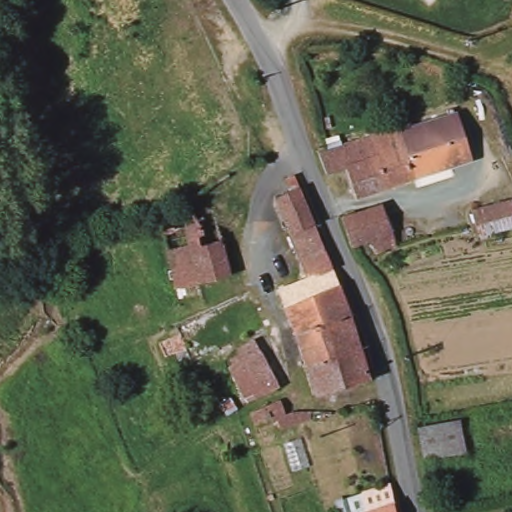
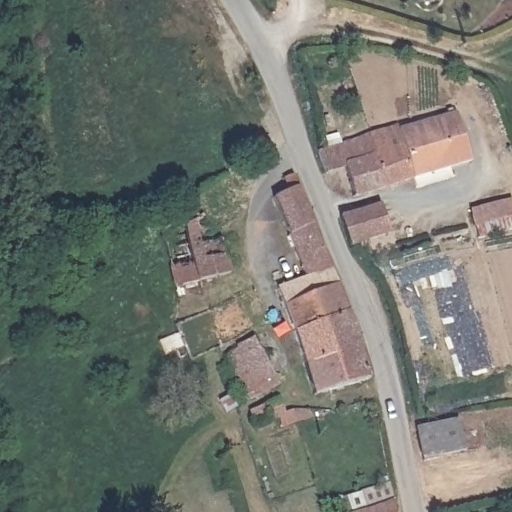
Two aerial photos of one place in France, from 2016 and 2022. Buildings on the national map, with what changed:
unchanged [(407,197),(401,177),(353,191),(347,172),(331,177),(331,175),(328,165),(323,149),(393,128),(403,125),(404,128),(458,112),(471,157),(439,166),(444,186),(407,197)]
unchanged [(286,287),(294,284),(309,277),(313,275),(278,197),(287,190),(284,177),(291,173),(343,304),(346,311),(357,344),(363,362),(365,368),(366,372),(348,379),(321,390),(311,362),(286,287)]
unchanged [(182,202),(213,181),(225,197),(238,190),(251,210),(220,228),(231,275),(198,281),(171,284),(157,224),(182,202)]
unchanged [(477,222),(471,205),(500,195),(510,192),(512,198),(512,210),(506,212),(498,215),(477,222)]
unchanged [(354,244),(348,228),(343,216),(385,203),(393,233),(402,230),(404,235),(405,236),(407,242),(387,249),(376,253),(371,240),(355,246),(354,244)]
unchanged [(242,398),(240,393),(237,387),(229,365),(227,360),(243,353),(259,346),(273,384),(263,389),(257,391),(242,398)]
unchanged [(302,418),(292,422),(288,412),(265,421),(262,422),(256,407),(278,399),(278,398),(288,395),(292,406),(292,407),(293,410),(299,408),(302,418)]
unchanged [(317,404),(319,410),(305,416),(303,407),(317,404)]
unchanged [(461,409),(476,483),(443,491),(438,461),(422,462),(415,416),(461,409)]
unchanged [(367,509),(362,491),(390,484),(395,502),(397,512),(357,512),(367,509)]

